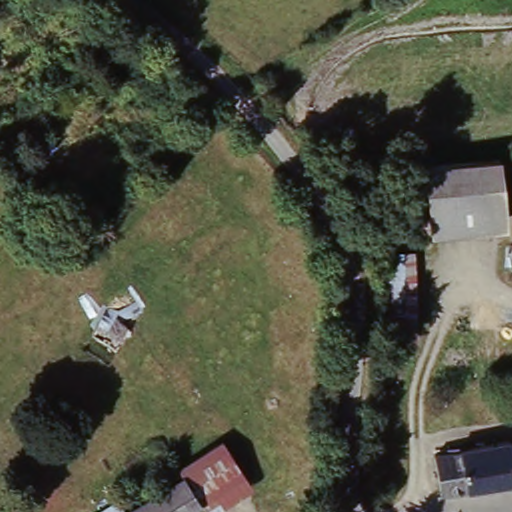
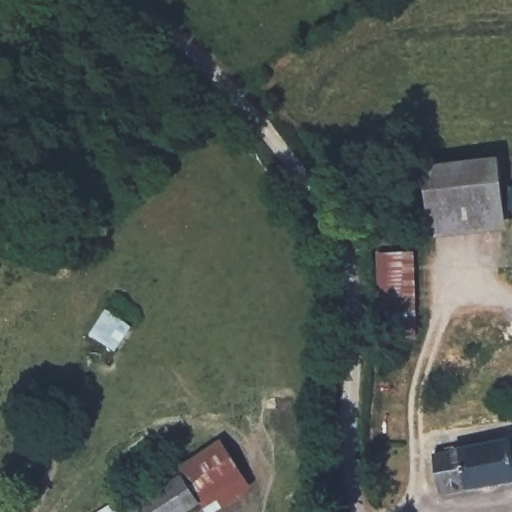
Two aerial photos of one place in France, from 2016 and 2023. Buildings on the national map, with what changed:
unchanged [(18,134),(26,144),(48,128),(61,145),(26,172),(13,180),(0,161),(0,147),(18,134)]
unchanged [(501,163),(505,220),(434,227),(425,170),(501,163)]
unchanged [(512,206),(512,211),(511,211),(512,206)]
unchanged [(415,254),(414,315),(382,314),(381,253),(415,254)]
unchanged [(112,307),(135,324),(120,346),(96,329),(112,307)]
unchanged [(512,484),(443,500),(434,462),(512,444),(512,484)]
unchanged [(232,447),(252,482),(204,509),(184,473),(232,447)]
unchanged [(204,509),(200,512),(132,512),(128,505),(133,502),(168,483),(164,476),(180,467),(184,473),(204,509)]
unchanged [(123,497),(128,505),(132,512),(98,512),(123,497)]

